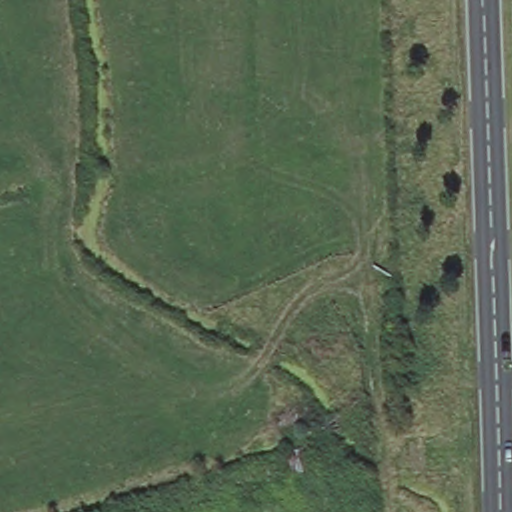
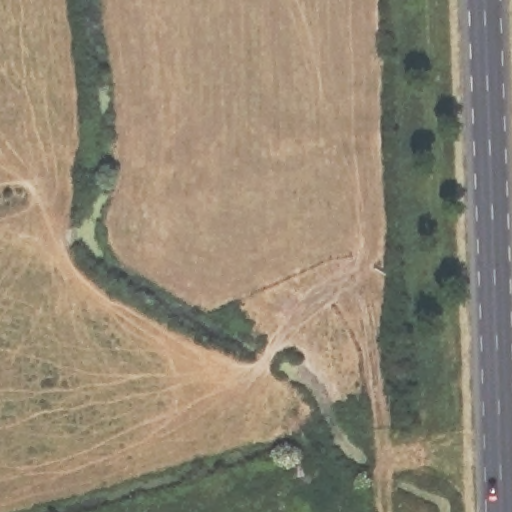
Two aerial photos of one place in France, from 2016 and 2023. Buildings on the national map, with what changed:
unchanged [(220,377),(234,365),(254,396),(236,407),(220,377)]

